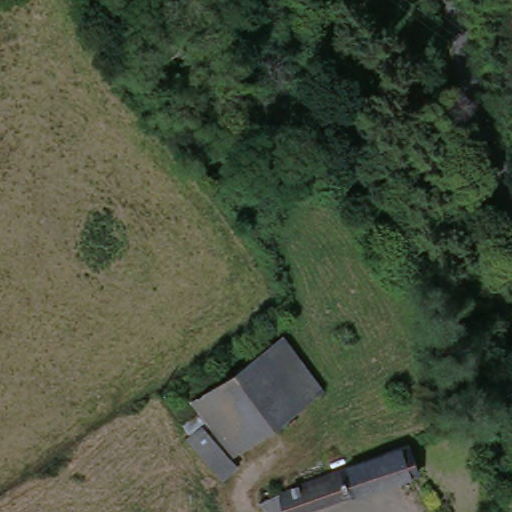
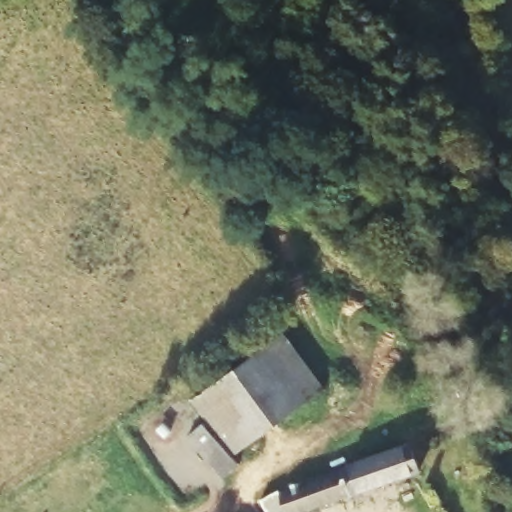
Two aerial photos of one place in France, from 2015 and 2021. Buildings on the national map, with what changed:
unchanged [(234,455),(244,466),(223,480),(185,435),(203,420),(186,402),(283,332),(322,387),(234,455)]
unchanged [(400,447),(406,445),(416,471),(299,512),(267,512),(261,494),(276,489),(321,474),(400,447)]

